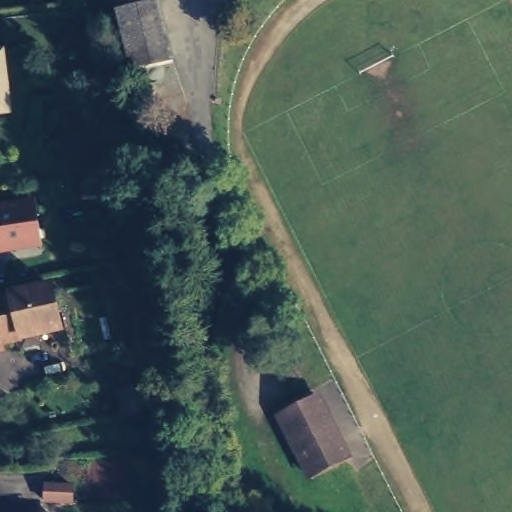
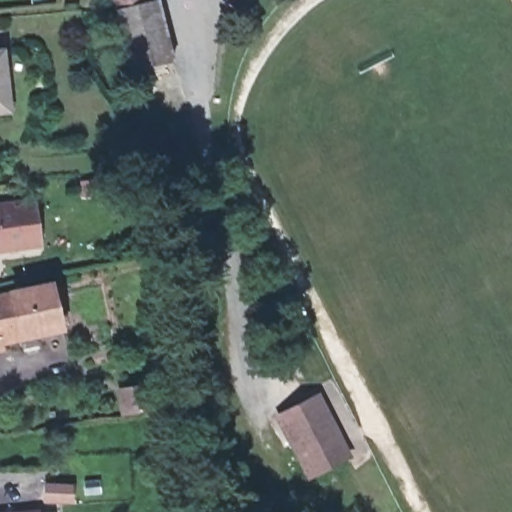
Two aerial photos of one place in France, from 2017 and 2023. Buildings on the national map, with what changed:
unchanged [(167,54),(125,62),(114,4),(113,0),(157,0),(167,54)]
unchanged [(0,114),(0,62),(10,112),(0,114)]
unchanged [(0,250),(0,207),(31,198),(39,242),(0,250)]
unchanged [(52,283),(62,327),(0,344),(0,298),(52,283)]
unchanged [(152,382),(155,407),(117,410),(113,384),(152,382)]
unchanged [(276,411),(307,396),(315,392),(345,452),(337,457),(306,472),(276,411)]
unchanged [(47,500),(46,479),(73,481),(75,502),(47,500)]

